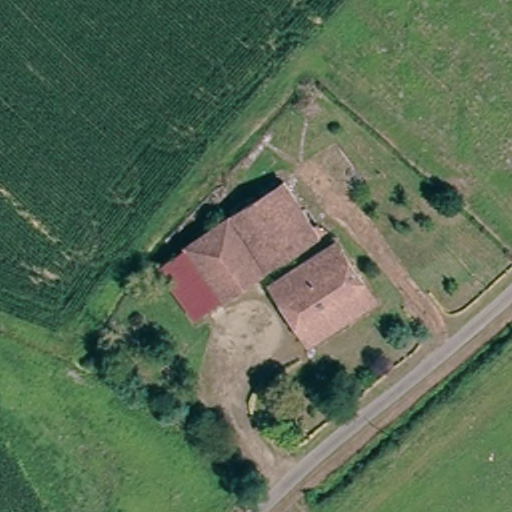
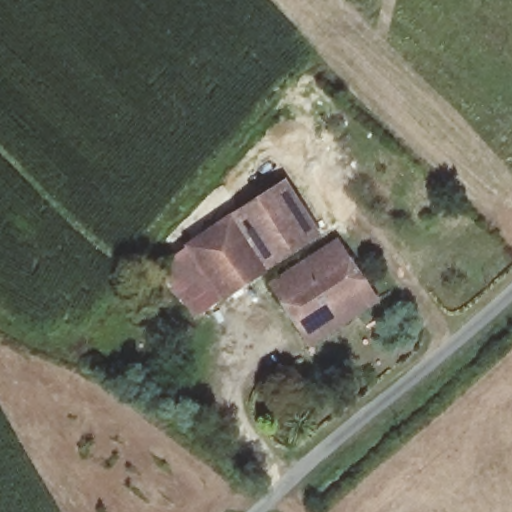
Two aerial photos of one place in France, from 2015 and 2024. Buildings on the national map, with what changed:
unchanged [(282,187),(315,239),(219,298),(187,243),(282,187)]
unchanged [(219,298),(189,317),(157,261),(187,243),(219,298)]
unchanged [(305,343),(269,286),(336,244),(372,302),(305,343)]

